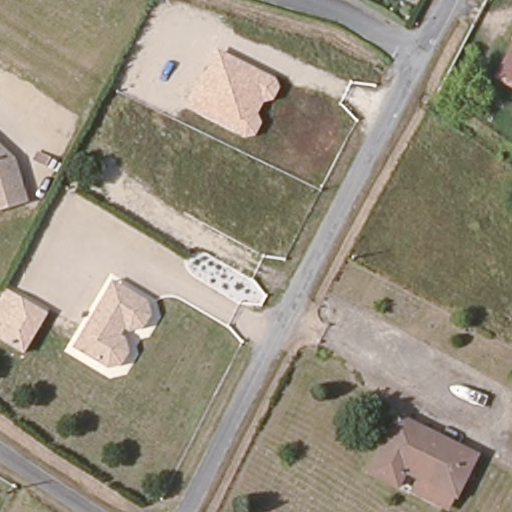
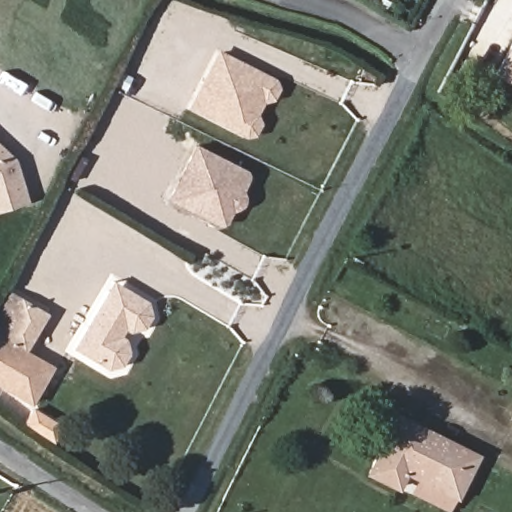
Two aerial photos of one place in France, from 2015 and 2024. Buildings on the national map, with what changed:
unchanged [(499,71),(512,44),(512,77),(499,71)]
unchanged [(273,96),(252,138),(244,141),(232,135),(189,114),(216,60),(259,81),(271,87),(273,96)]
unchanged [(28,198),(0,206),(0,143),(15,156),(28,198)]
new [(246,171),(250,177),(243,192),(229,196),(233,212),(227,225),(220,226),(167,201),(195,145),(246,171)]
unchanged [(121,337),(126,340),(130,353),(123,365),(109,368),(74,348),(109,290),(114,282),(148,302),(151,317),(144,328),(131,332),(126,329),(121,337)]
new [(0,340),(0,296),(4,289),(24,302),(1,341),(0,340)]
unchanged [(1,341),(24,302),(29,305),(49,317),(44,325),(26,355),(1,341)]
new [(0,388),(0,340),(1,341),(26,355),(29,352),(54,366),(30,406),(0,388)]
unchanged [(475,457),(458,495),(408,471),(398,488),(369,472),(394,418),(475,457)]

